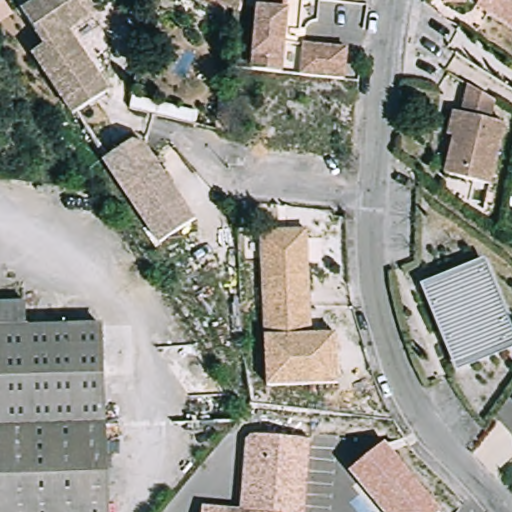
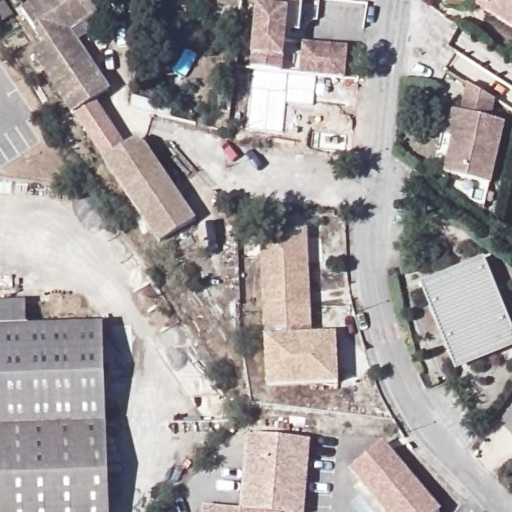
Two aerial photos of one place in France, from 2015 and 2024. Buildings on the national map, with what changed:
unchanged [(13,14),(0,23),(0,2),(3,0),(4,0),(13,14)]
unchanged [(93,5),(63,23),(101,83),(67,105),(28,45),(40,36),(17,4),(22,0),(90,0),(93,5)]
unchanged [(301,22),(286,21),(281,68),(253,65),(259,0),(303,0),(301,22)]
unchanged [(509,25),(479,7),(483,2),(479,0),(512,0),(512,20),(509,25)]
unchanged [(299,70),(301,38),(345,42),(341,74),(299,70)]
new [(256,72),(318,78),(314,107),(288,105),(284,135),(251,130),(256,72)]
unchanged [(491,128),(504,131),(493,192),(449,183),(457,142),(451,141),(455,118),(467,120),(472,91),(494,105),(491,128)]
unchanged [(143,141),(196,217),(159,244),(103,159),(133,140),(143,141)]
unchanged [(243,169),(222,166),(224,146),(245,149),(243,169)]
unchanged [(309,329),(336,328),(338,376),(265,377),(261,280),(259,225),(304,223),(309,329)]
unchanged [(478,264),(510,338),(456,362),(426,286),(478,264)]
unchanged [(0,305),(23,305),(25,329),(98,326),(103,405),(116,405),(118,426),(0,430),(0,305)]
unchanged [(118,456),(104,457),(107,512),(0,512),(0,430),(118,426),(118,456)]
unchanged [(279,510),(279,512),(199,512),(199,504),(239,506),(244,435),(248,430),(308,434),(302,510),(279,510)]
unchanged [(437,512),(383,512),(348,470),(379,443),(437,512)]

